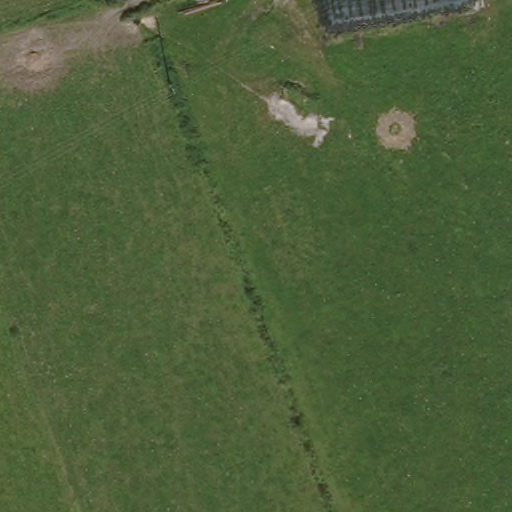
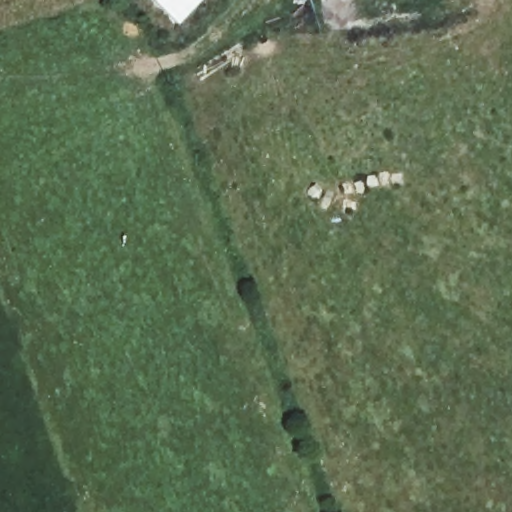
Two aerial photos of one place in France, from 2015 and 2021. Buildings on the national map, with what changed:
new [(152,0),(198,0),(176,23),(152,0)]

